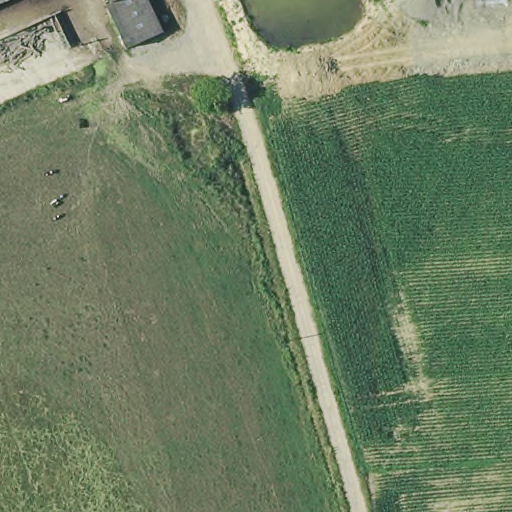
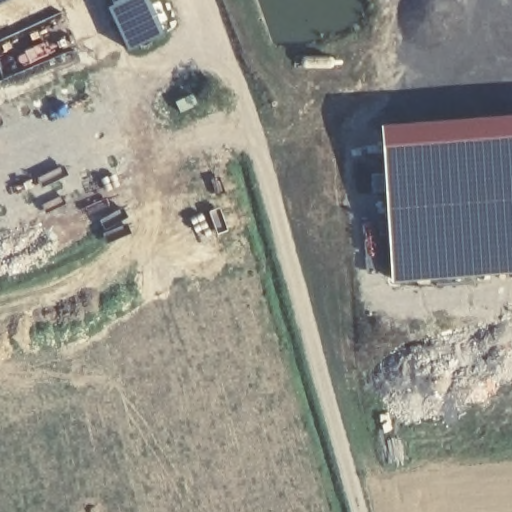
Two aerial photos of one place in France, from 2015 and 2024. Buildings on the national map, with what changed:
unchanged [(149,0),(163,31),(122,51),(101,5),(108,2),(111,0),(149,0)]
unchanged [(107,0),(111,0),(108,2),(107,0)]
new [(389,282),(377,122),(512,111),(512,271),(389,282)]

